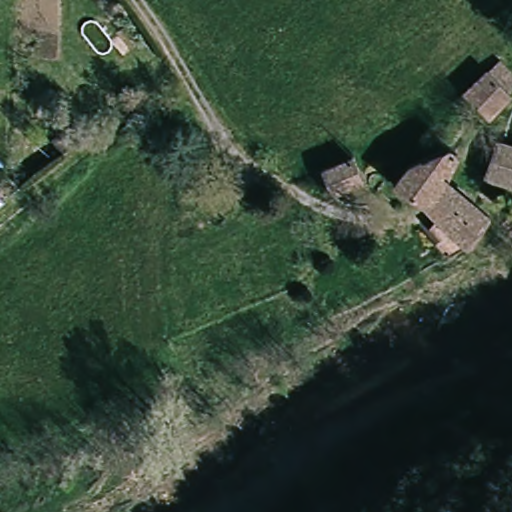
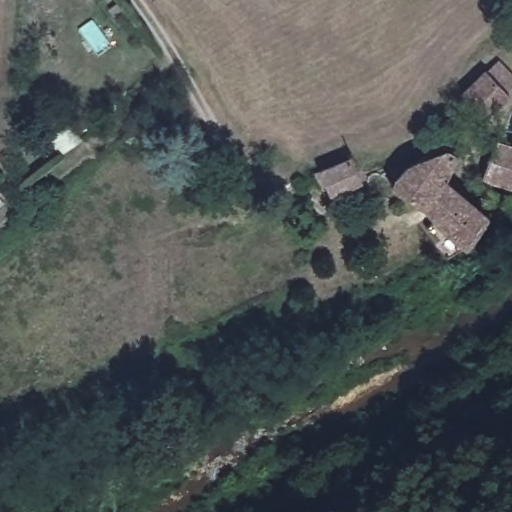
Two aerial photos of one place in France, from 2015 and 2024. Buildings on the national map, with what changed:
unchanged [(512,85),(512,96),(495,115),(469,92),(493,69),(512,85)]
unchanged [(483,180),(495,144),(503,145),(512,147),(512,190),(483,180)]
unchanged [(402,196),(390,190),(425,159),(445,152),(455,158),(450,169),(445,180),(425,211),(402,196)]
unchanged [(366,181),(336,195),(324,171),(353,156),(366,181)]
unchanged [(461,254),(450,239),(452,237),(425,211),(445,180),(487,217),(461,254)]

